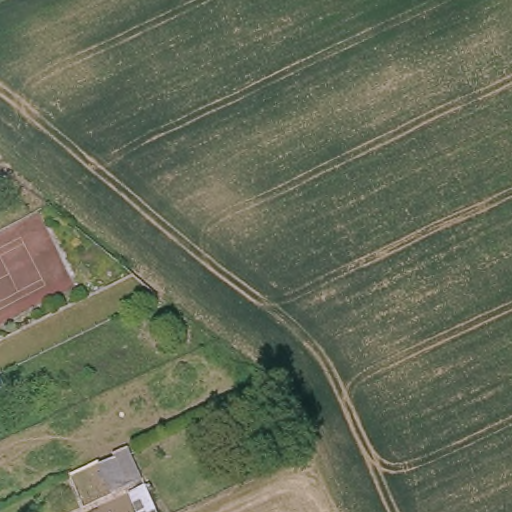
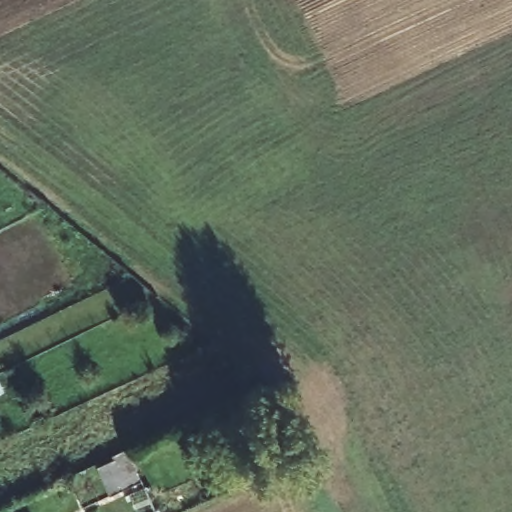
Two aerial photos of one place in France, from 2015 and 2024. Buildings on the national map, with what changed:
unchanged [(102,471),(135,456),(158,512),(135,512),(129,499),(115,504),(102,471)]

